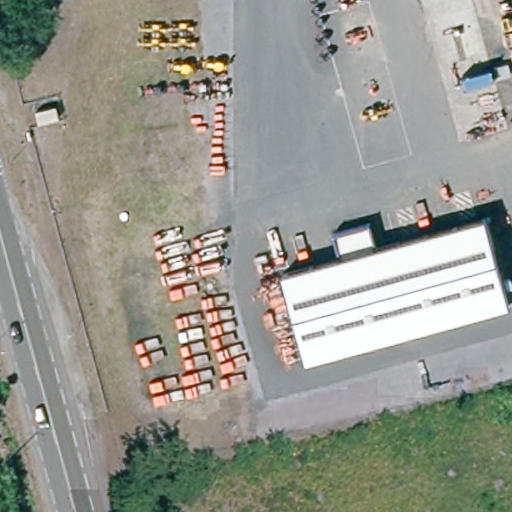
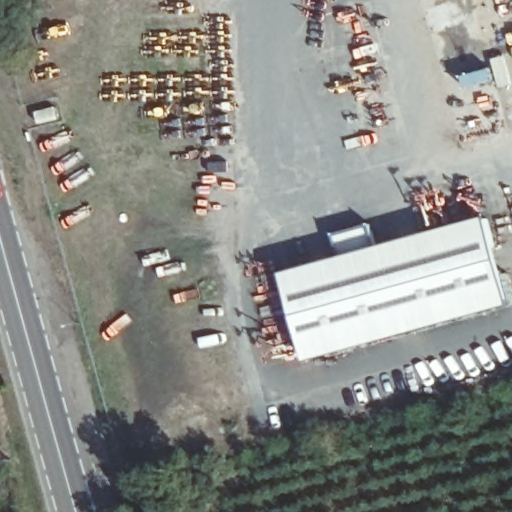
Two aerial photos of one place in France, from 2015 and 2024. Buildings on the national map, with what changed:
unchanged [(51,96),(55,108),(35,113),(32,101),(51,96)]
unchanged [(280,278),(338,262),(332,238),(369,228),(375,253),(486,224),(508,305),(302,359),(280,278)]

